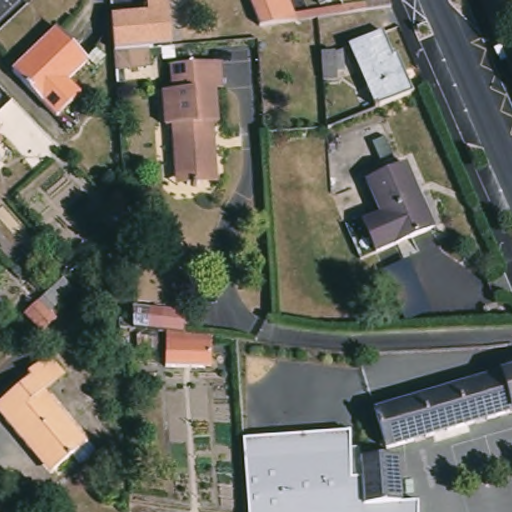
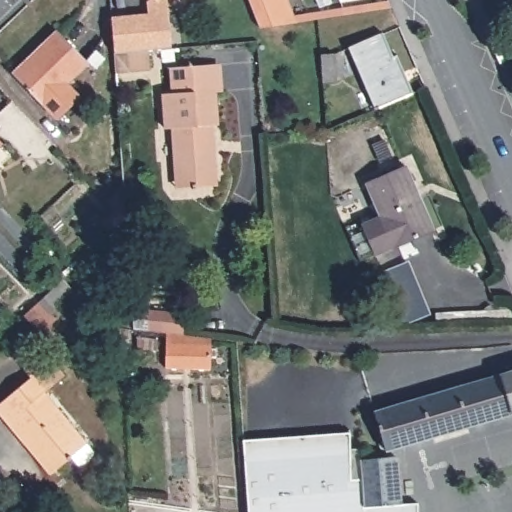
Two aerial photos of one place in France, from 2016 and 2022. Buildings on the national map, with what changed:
unchanged [(115,73),(114,52),(110,17),(145,15),(148,0),(150,0),(163,0),(166,0),(168,24),(147,26),(149,50),(149,70),(115,73)]
unchanged [(267,29),(256,0),(283,0),(292,25),(267,29)]
unchanged [(84,60),(63,80),(76,94),(51,117),(39,103),(9,72),(54,29),(84,60)]
unchanged [(383,32),(393,56),(397,54),(413,94),(380,107),(372,111),(348,48),(383,32)]
unchanged [(338,53),(339,81),(327,82),(325,54),(338,53)]
unchanged [(176,177),(174,130),(166,130),(164,95),(174,95),(172,68),(194,66),(215,65),(217,91),(219,125),(213,126),(216,175),(203,175),(203,187),(198,187),(198,190),(194,190),(194,187),(188,188),(177,189),(176,177)]
unchanged [(0,146),(0,140),(3,143),(0,146)]
unchanged [(407,172),(419,201),(434,233),(377,258),(364,229),(381,221),(368,190),(407,172)]
unchanged [(94,223),(110,207),(102,199),(118,185),(120,217),(103,234),(94,223)]
unchanged [(61,278),(72,291),(53,315),(58,320),(40,336),(19,317),(61,278)]
unchanged [(156,341),(156,350),(135,349),(135,338),(156,341)]
unchanged [(209,343),(209,368),(164,368),(165,343),(209,343)]
unchanged [(32,451),(29,454),(0,420),(0,407),(29,381),(26,377),(48,360),(64,378),(43,396),(85,447),(51,475),(32,451)]
unchanged [(356,461),(354,438),(353,419),(512,372),(512,414),(356,461)]
unchanged [(413,504),(413,512),(241,512),(236,440),(347,433),(354,438),(356,461),(356,463),(359,509),(395,506),(413,504)]
unchanged [(392,460),(395,506),(359,509),(356,463),(392,460)]

